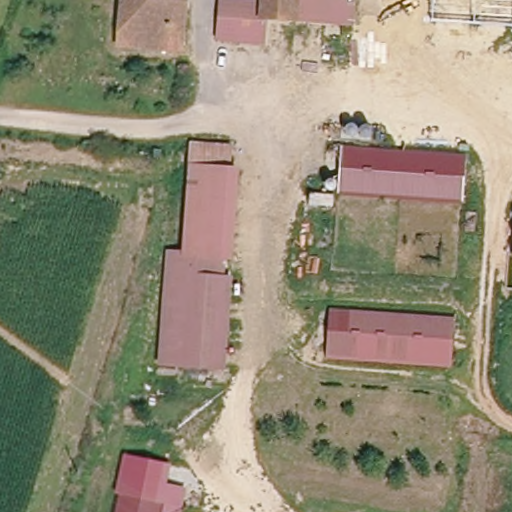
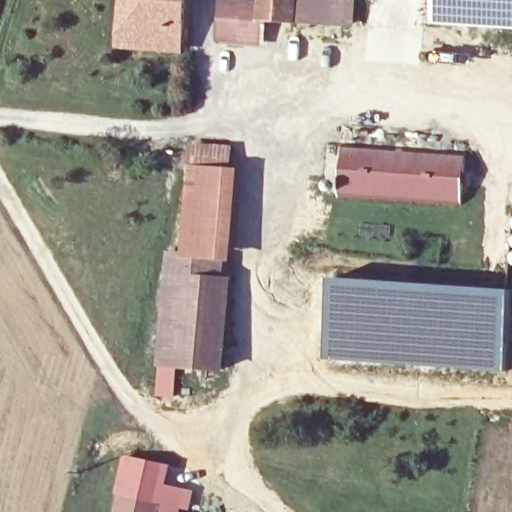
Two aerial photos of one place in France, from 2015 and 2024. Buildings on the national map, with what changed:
unchanged [(114,29),(117,0),(177,0),(173,35),(114,29)]
unchanged [(216,0),(261,0),(258,14),(256,28),(212,23),(216,0)]
unchanged [(350,27),(311,22),(258,14),(261,0),(336,0),(336,3),(354,6),(350,27)]
new [(512,29),(432,23),(433,0),(512,0),(512,29)]
unchanged [(173,35),(171,56),(112,51),(114,29),(173,35)]
unchanged [(226,367),(162,365),(167,250),(187,251),(189,219),(192,154),(192,143),(193,144),(233,145),(234,164),(239,165),(236,227),(234,257),(227,258),(227,277),(232,277),(226,367)]
unchanged [(461,201),(343,193),(345,147),(464,153),(461,201)]
new [(512,290),(506,370),(325,358),(331,278),(512,290)]
demolished [(451,363),(328,360),(331,312),(454,316),(451,363)]
unchanged [(165,484),(122,475),(127,455),(171,466),(165,484)]
unchanged [(187,489),(183,512),(114,512),(122,475),(187,489)]

